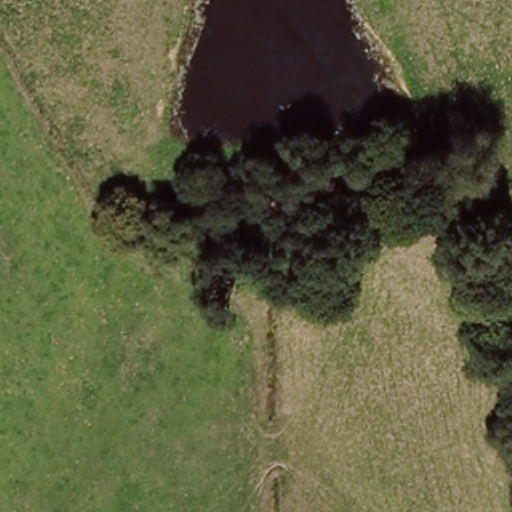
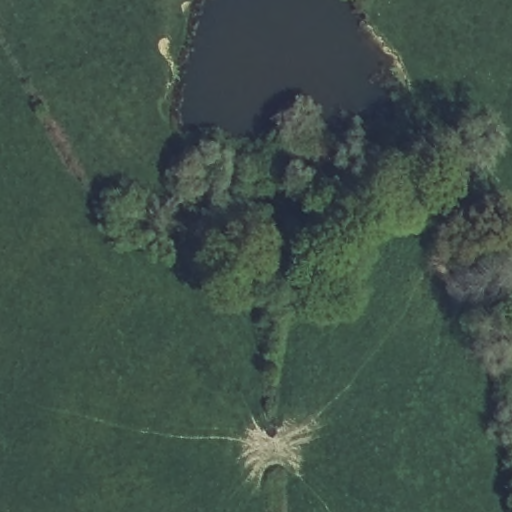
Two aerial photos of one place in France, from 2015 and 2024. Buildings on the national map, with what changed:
[]

